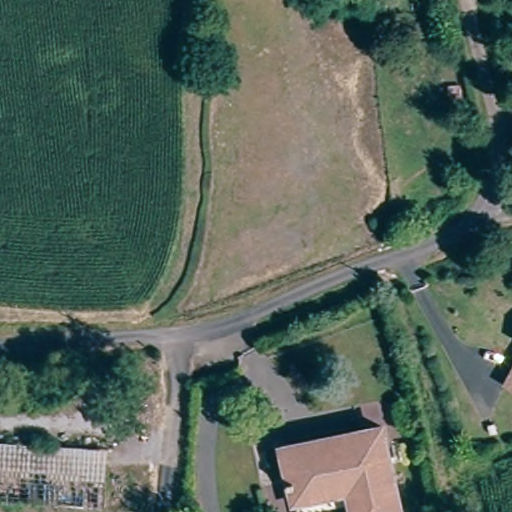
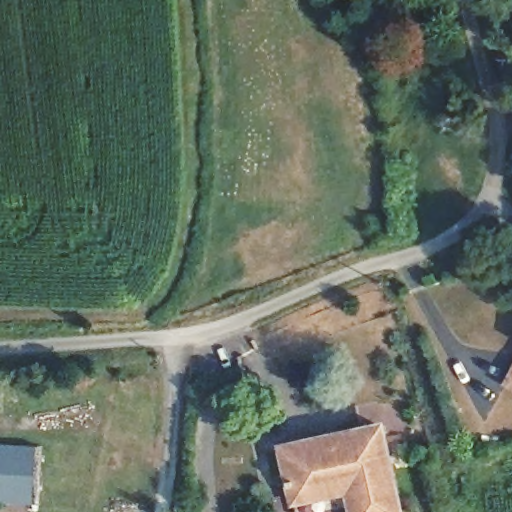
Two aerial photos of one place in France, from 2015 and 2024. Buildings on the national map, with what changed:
unchanged [(512,349),(512,381),(498,373),(512,349)]
unchanged [(399,512),(352,512),(347,491),(293,502),(282,448),(381,426),(399,512)]
new [(38,444),(35,500),(0,499),(0,441),(38,444)]

